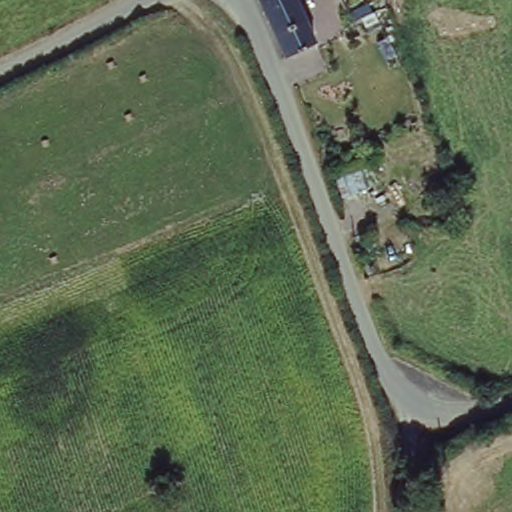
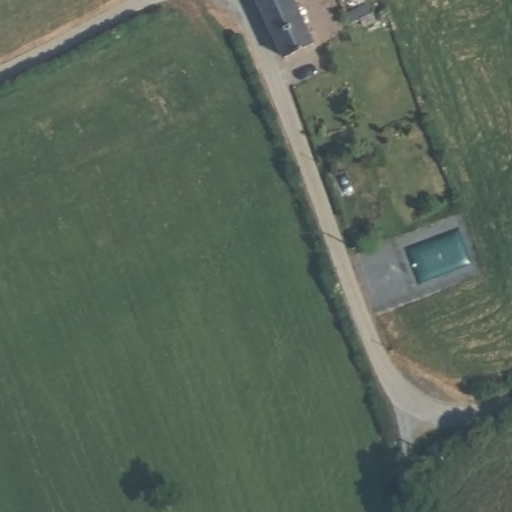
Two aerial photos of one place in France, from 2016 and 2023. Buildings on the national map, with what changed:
unchanged [(260,0),(293,0),(312,45),(292,59),(260,0)]
unchanged [(363,30),(354,35),(348,23),(356,20),(363,30)]

